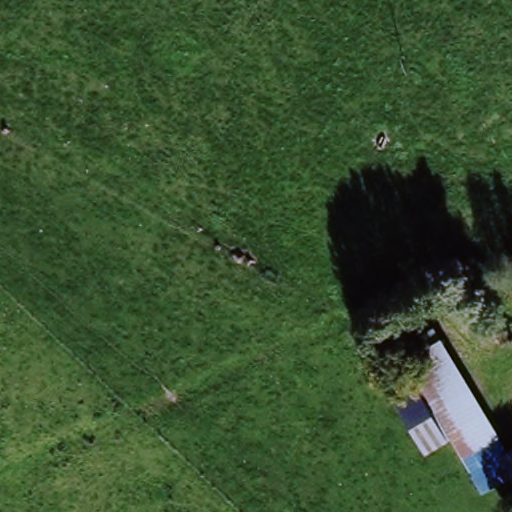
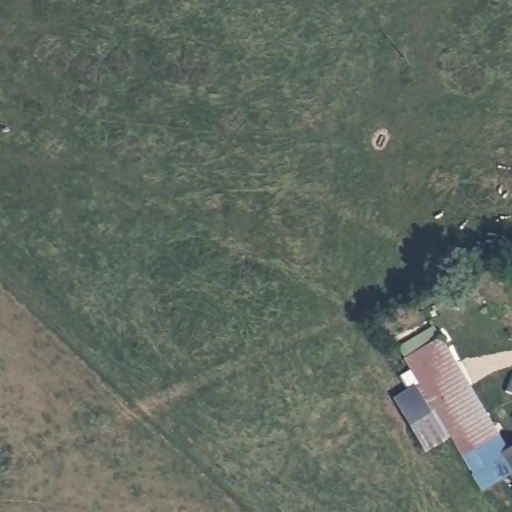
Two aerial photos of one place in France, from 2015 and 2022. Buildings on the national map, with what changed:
unchanged [(512,450),(512,479),(511,477),(482,495),(448,442),(422,458),(383,391),(407,376),(399,361),(440,342),(506,453),(512,450)]

